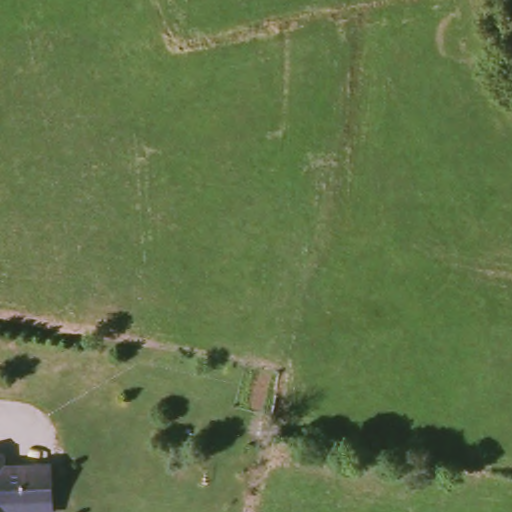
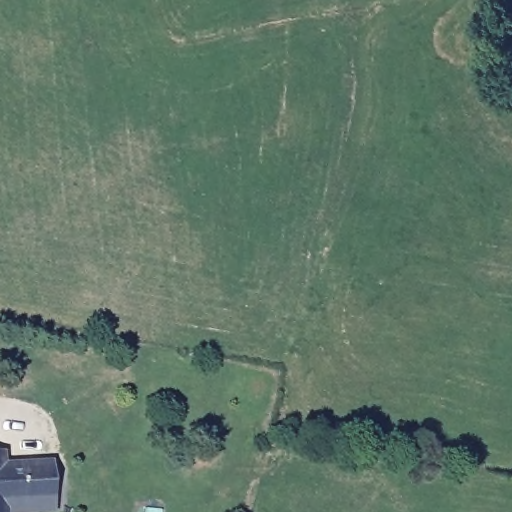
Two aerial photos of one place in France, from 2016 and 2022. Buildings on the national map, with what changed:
unchanged [(7,453),(8,471),(18,471),(17,465),(55,463),(56,502),(57,512),(0,512),(0,454),(7,453)]

